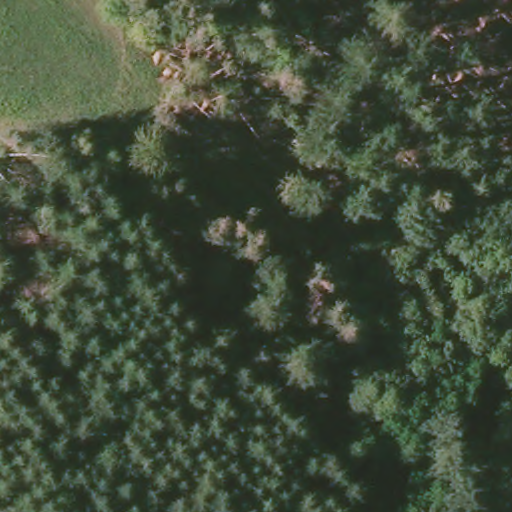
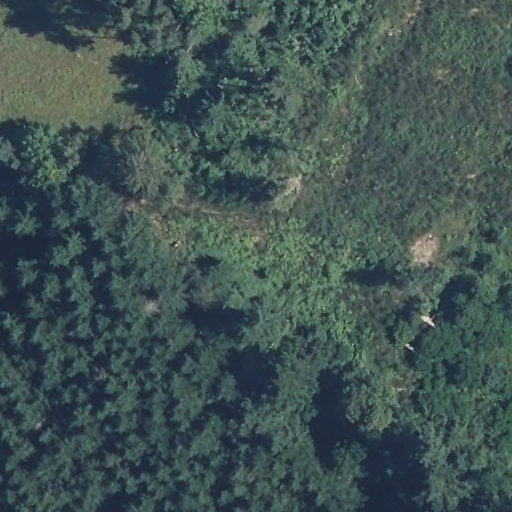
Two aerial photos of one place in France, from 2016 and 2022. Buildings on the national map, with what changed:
unchanged [(407,339),(425,314),(442,328),(425,353),(407,339)]

